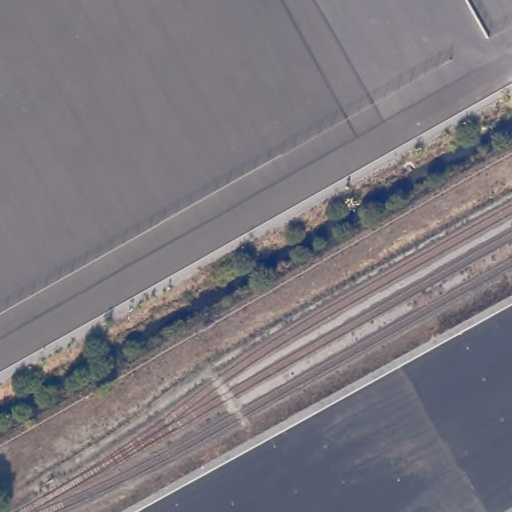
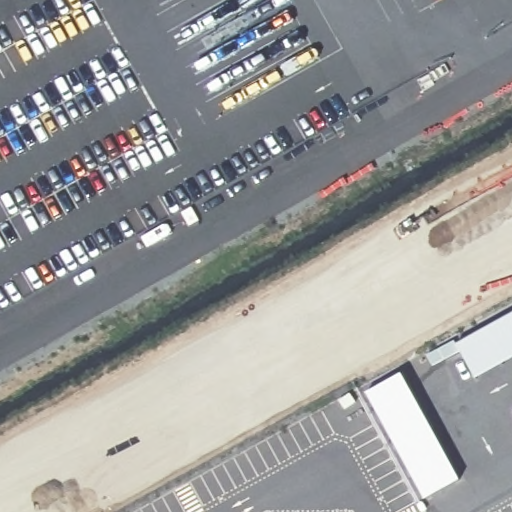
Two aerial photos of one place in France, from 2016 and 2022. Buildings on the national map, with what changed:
new [(512,313),(512,359),(477,379),(457,344),(512,313)]
new [(403,372),(463,479),(426,499),(368,393),(403,372)]

